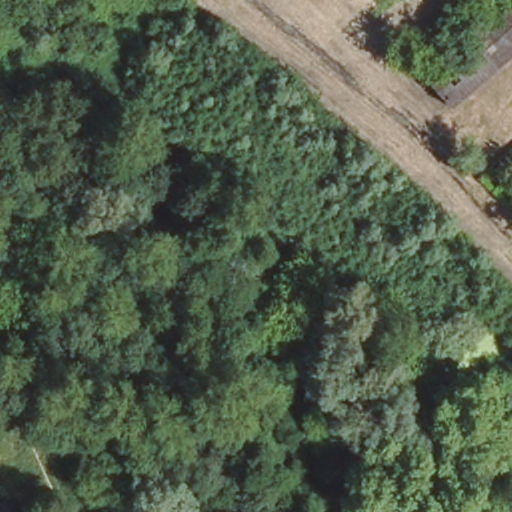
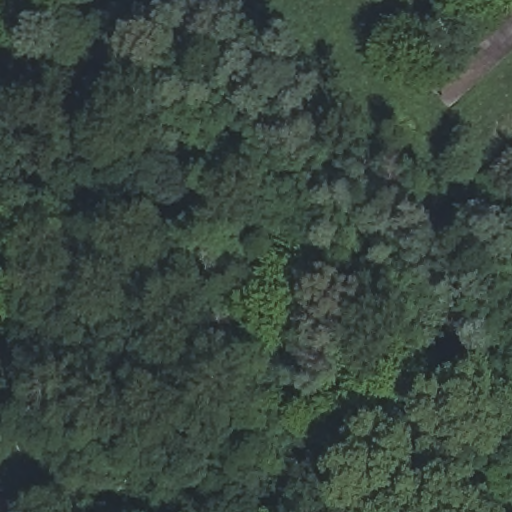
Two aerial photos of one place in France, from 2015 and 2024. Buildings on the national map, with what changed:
unchanged [(421,77),(476,28),(509,0),(512,0),(512,57),(451,110),(421,77)]
unchanged [(464,14),(480,0),(509,0),(476,28),(464,14)]

